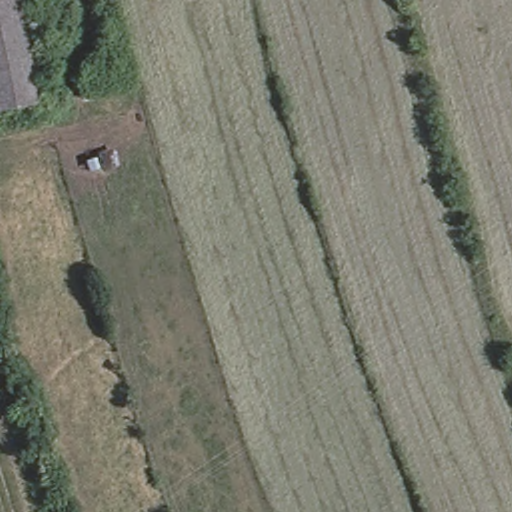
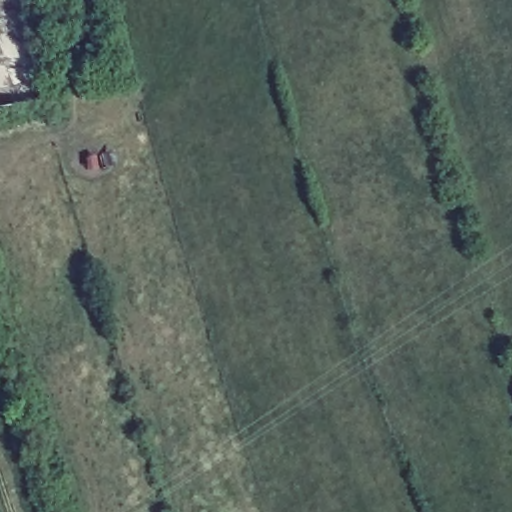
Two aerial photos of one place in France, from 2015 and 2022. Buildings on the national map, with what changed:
unchanged [(0,104),(0,0),(25,0),(46,97),(0,104)]

